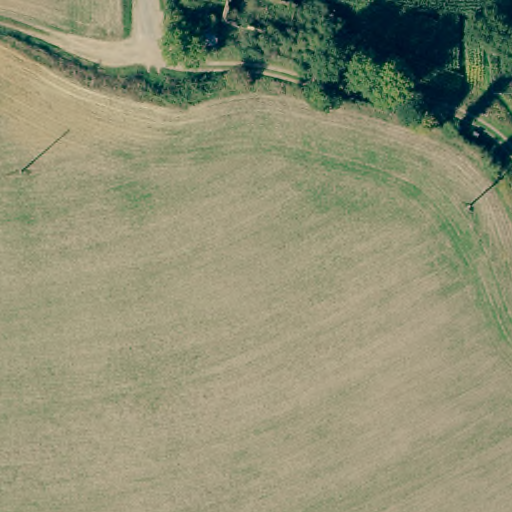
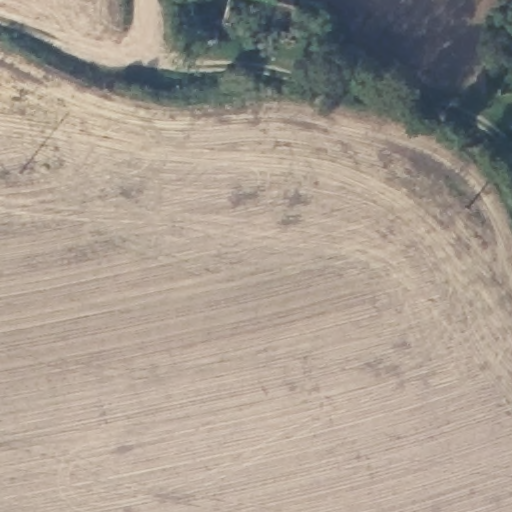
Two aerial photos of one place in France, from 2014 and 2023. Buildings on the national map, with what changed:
unchanged [(258,34),(223,24),(229,0),(266,0),(258,34)]
unchanged [(217,32),(216,45),(203,45),(204,32),(217,32)]

